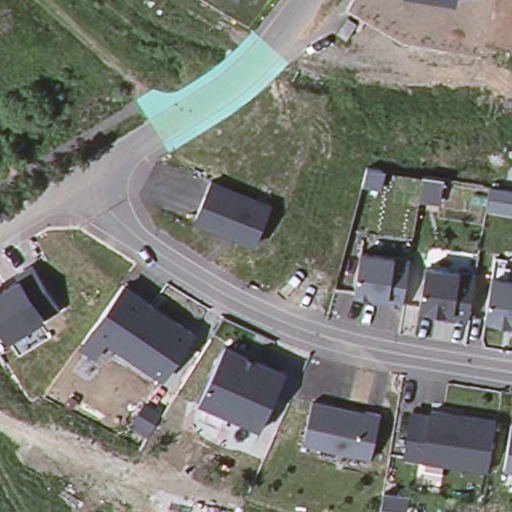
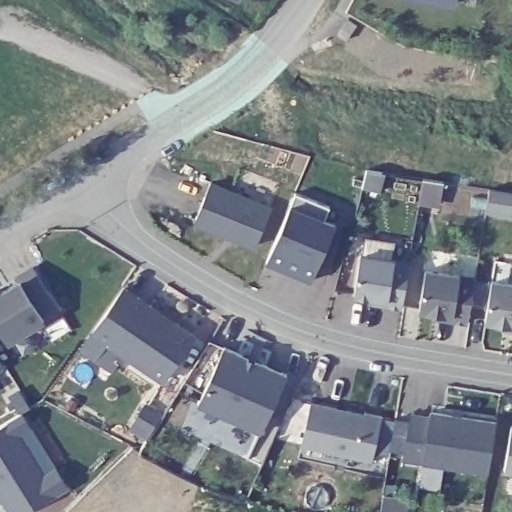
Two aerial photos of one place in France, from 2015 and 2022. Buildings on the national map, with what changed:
unchanged [(444,0),(456,0),(456,2),(444,0)]
unchanged [(358,23),(347,38),(338,32),(349,17),(358,23)]
new [(385,177),(381,195),(363,189),(367,173),(385,177)]
unchanged [(271,205),(255,244),(231,235),(195,220),(200,209),(211,181),(271,205)]
new [(444,185),(440,209),(419,205),(423,182),(444,185)]
unchanged [(487,215),(492,189),(512,193),(512,219),(487,215)]
new [(330,205),(324,218),(335,223),(312,279),(267,261),(295,191),(330,205)]
unchanged [(410,260),(402,305),(386,302),(387,297),(354,292),(360,252),(410,260)]
unchanged [(492,278),(495,258),(512,261),(512,322),(485,318),(492,278)]
unchanged [(439,311),(419,307),(425,267),(475,275),(468,320),(452,318),(439,316),(439,311)]
unchanged [(61,310),(6,343),(0,334),(0,291),(39,269),(61,310)]
unchanged [(163,379),(93,330),(124,285),(153,306),(177,322),(194,334),(163,379)]
unchanged [(286,373),(260,429),(199,402),(225,345),(286,373)]
new [(3,363),(0,365),(0,359),(3,363)]
new [(69,399),(76,402),(74,408),(66,405),(69,399)]
unchanged [(365,414),(366,411),(381,414),(371,459),(303,444),(312,402),(365,414)]
new [(0,490),(0,425),(25,410),(31,423),(67,485),(54,494),(25,512),(13,512),(0,490)]
unchanged [(430,416),(431,411),(448,413),(495,421),(491,449),(488,470),(404,457),(405,451),(411,412),(430,416)]
unchanged [(512,443),(512,475),(507,474),(512,443)]
unchanged [(402,512),(399,512),(382,508),(384,493),(404,497),(402,512)]

